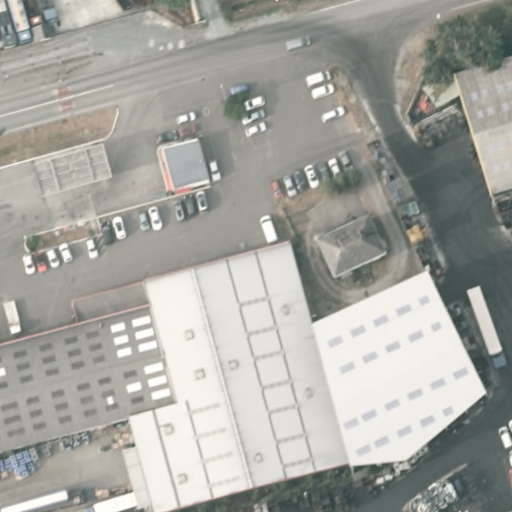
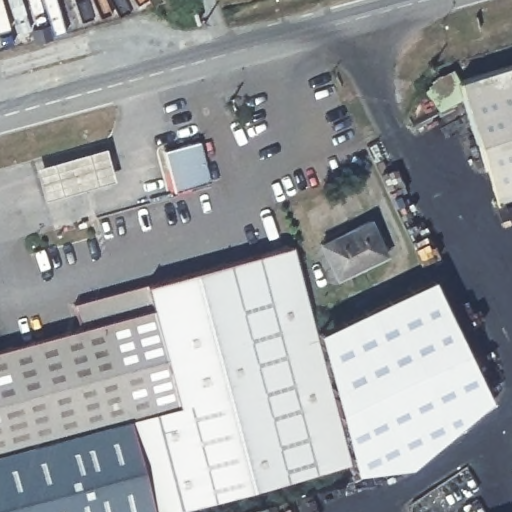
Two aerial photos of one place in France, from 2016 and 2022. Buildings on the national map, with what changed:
unchanged [(457,81),(512,64),(512,196),(494,202),(457,81)]
unchanged [(204,138),(214,177),(177,186),(168,147),(204,138)]
unchanged [(104,151),(112,180),(43,199),(34,169),(104,151)]
unchanged [(375,215),(391,250),(340,273),(323,238),(375,215)]
unchanged [(130,417),(0,454),(0,349),(78,328),(71,304),(296,246),(349,464),(174,512),(155,512),(130,417)]
unchanged [(490,400),(411,467),(356,472),(320,331),(430,278),(490,400)]
new [(130,417),(155,512),(0,512),(0,454),(130,417)]

